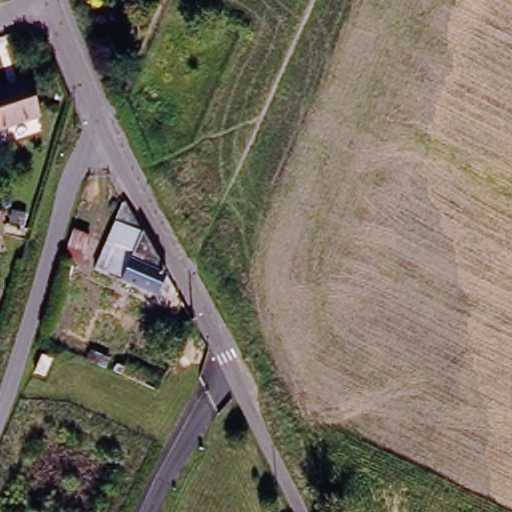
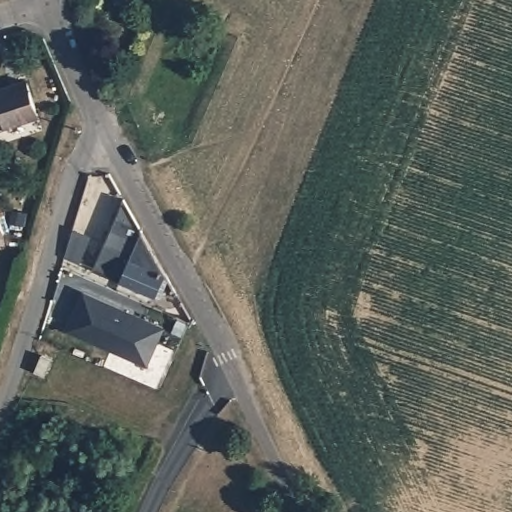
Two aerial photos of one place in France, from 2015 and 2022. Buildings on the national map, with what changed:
unchanged [(38,120),(0,132),(0,93),(27,84),(38,120)]
unchanged [(95,264),(123,196),(164,268),(156,289),(95,264)]
unchanged [(5,233),(0,235),(0,215),(5,233)]
unchanged [(90,235),(80,261),(62,253),(70,228),(90,235)]
new [(83,292),(162,326),(146,363),(67,329),(83,292)]
demolished [(124,367),(120,375),(113,371),(116,364),(124,367)]

